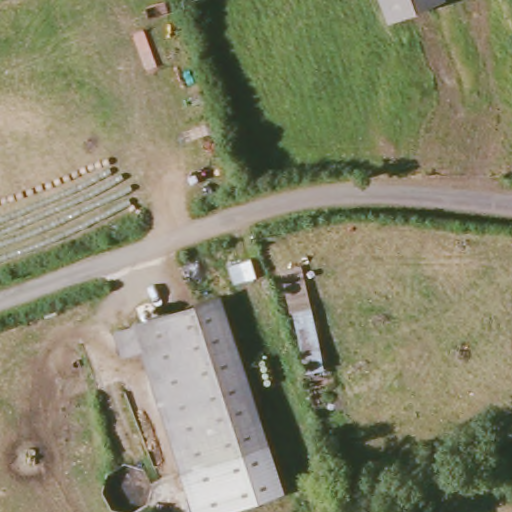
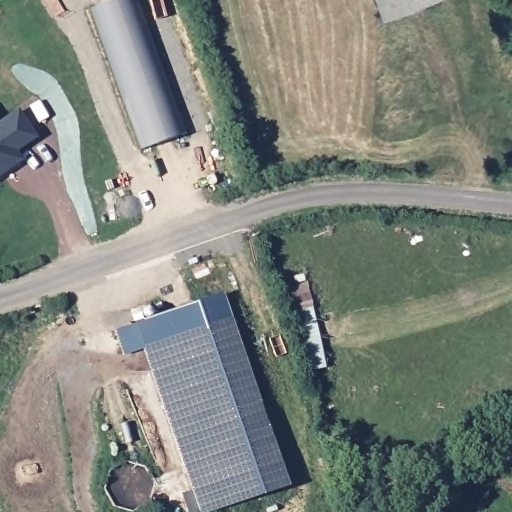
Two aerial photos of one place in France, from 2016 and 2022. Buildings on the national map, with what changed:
new [(89,10),(115,0),(140,0),(187,132),(141,149),(89,10)]
unchanged [(435,0),(389,17),(383,0),(435,0)]
unchanged [(128,356),(119,331),(226,296),(289,487),(213,512),(203,512),(146,350),(128,356)]

